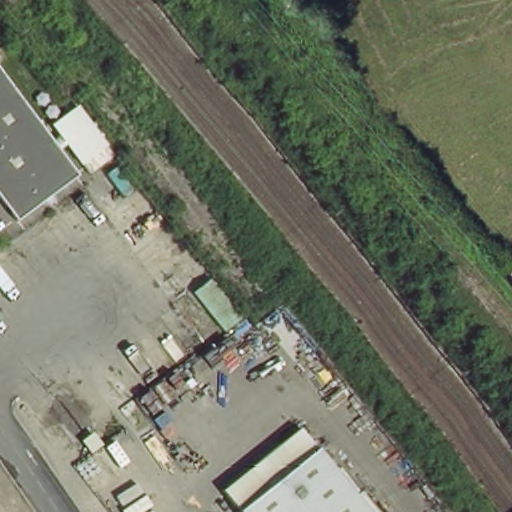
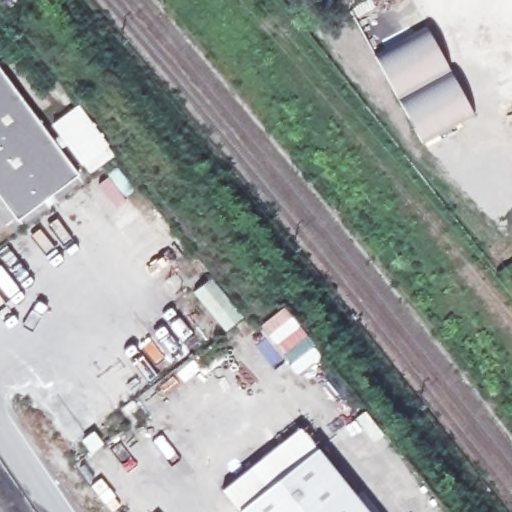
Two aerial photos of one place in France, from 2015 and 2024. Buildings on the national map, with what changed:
new [(426,24),(475,114),(421,143),(373,53),(426,24)]
unchanged [(2,71),(78,174),(75,176),(16,219),(0,197),(0,69),(2,71)]
unchanged [(269,485),(238,510),(221,490),(273,448),(299,428),(309,441),(314,448),(269,485)]
unchanged [(100,442),(90,450),(83,440),(92,432),(100,442)]
unchanged [(269,485),(314,448),(315,448),(353,496),(359,491),(376,512),(239,512),(238,510),(269,485)]

